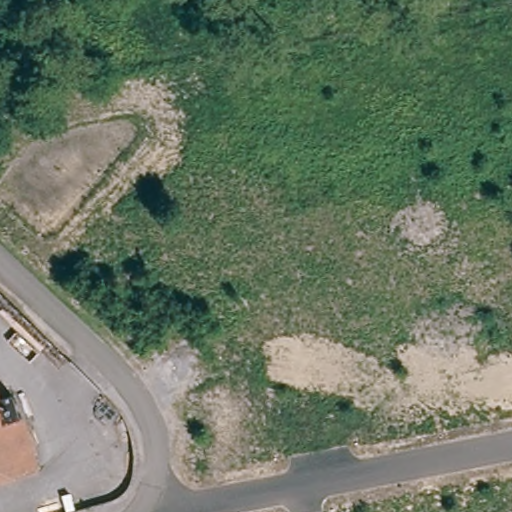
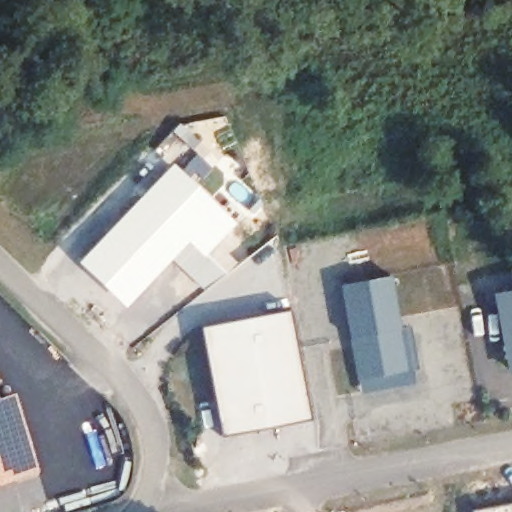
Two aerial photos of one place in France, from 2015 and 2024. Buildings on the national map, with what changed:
new [(189,241),(126,307),(79,261),(173,162),(218,206),(237,223),(205,256),(189,241)]
new [(392,275),(402,328),(408,327),(417,383),(361,392),(341,284),(392,275)]
new [(512,293),(512,368),(510,368),(497,296),(512,293)]
new [(292,308),(313,419),(222,437),(201,326),(292,308)]
unchanged [(31,441),(41,478),(0,489),(0,430),(9,430),(31,441)]
new [(512,503),(512,512),(471,512),(471,510),(512,503)]

